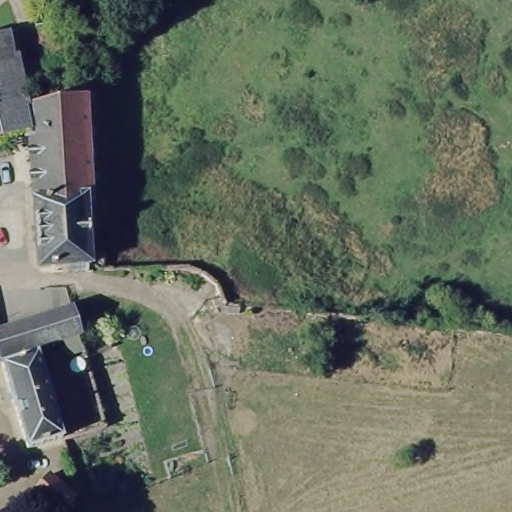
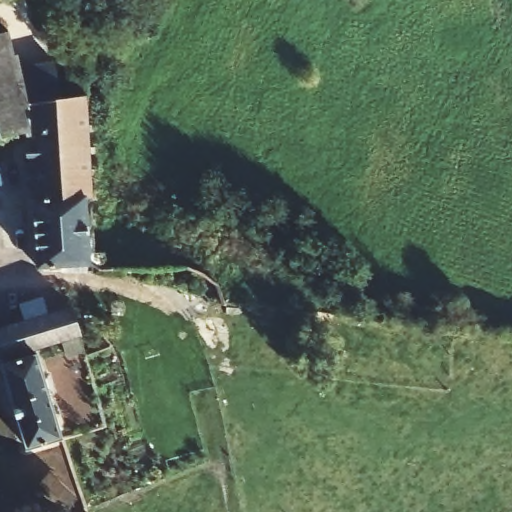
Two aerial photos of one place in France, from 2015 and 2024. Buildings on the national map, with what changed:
unchanged [(26,102),(30,133),(0,138),(0,38),(19,34),(26,102)]
unchanged [(87,95),(99,252),(36,253),(30,133),(26,102),(87,95)]
unchanged [(81,345),(58,349),(0,360),(0,332),(72,319),(81,345)]
unchanged [(43,359),(69,448),(26,459),(1,368),(43,359)]
unchanged [(54,466),(77,489),(56,510),(32,487),(54,466)]

